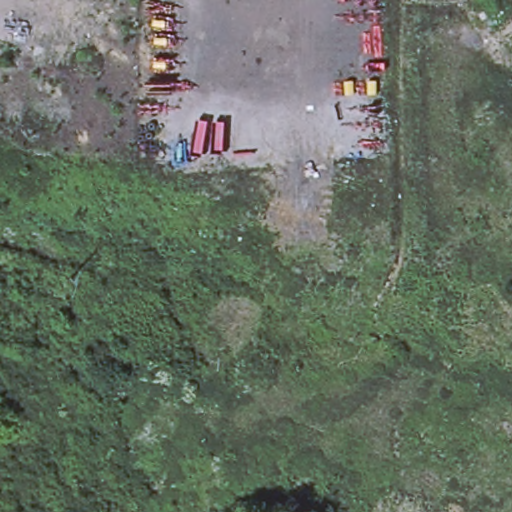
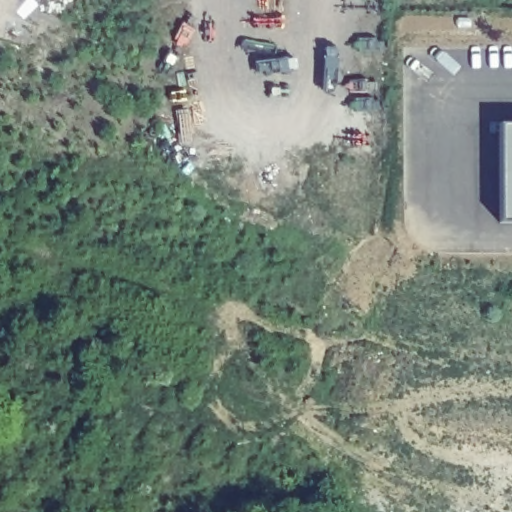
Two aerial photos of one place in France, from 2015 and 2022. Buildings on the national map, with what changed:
new [(512,219),(503,220),(506,123),(512,123),(512,219)]

